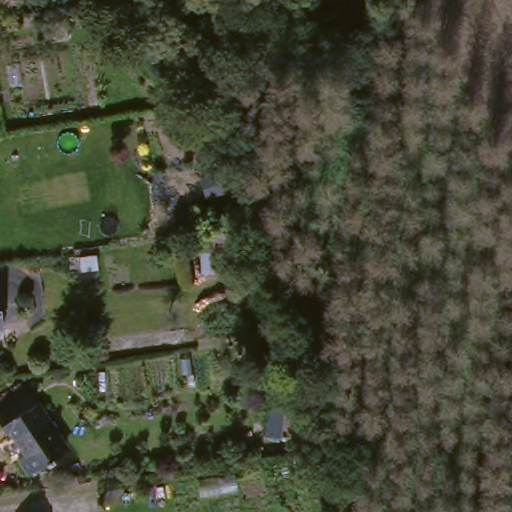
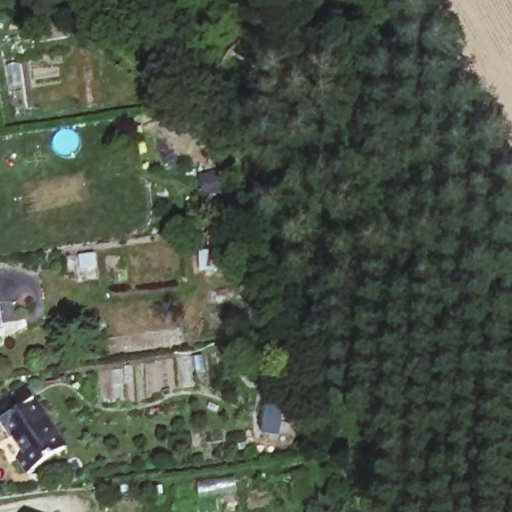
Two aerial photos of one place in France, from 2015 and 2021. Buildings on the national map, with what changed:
unchanged [(190,256),(204,257),(202,237),(228,233),(232,278),(193,279),(190,256)]
unchanged [(0,331),(0,297),(6,330),(0,331)]
unchanged [(33,479),(24,464),(33,459),(19,439),(14,442),(0,422),(0,416),(30,396),(69,450),(33,479)]

